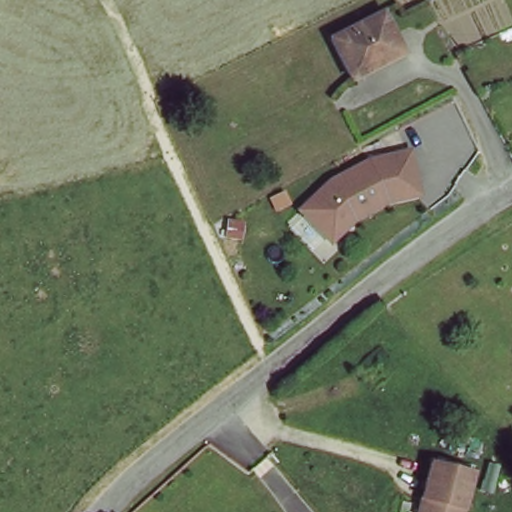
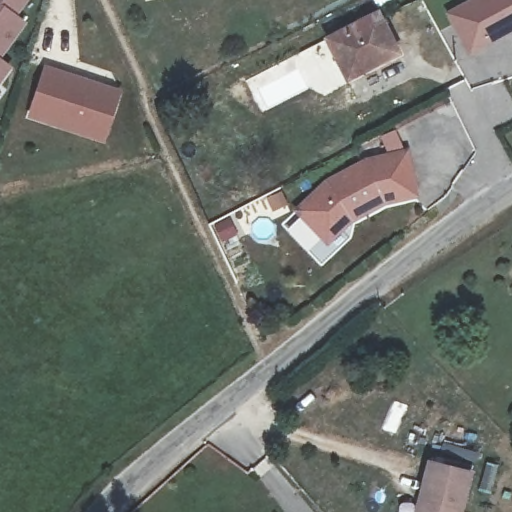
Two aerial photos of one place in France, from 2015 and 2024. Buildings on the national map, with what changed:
new [(29,0),(17,15),(28,22),(1,57),(12,67),(0,83),(0,0),(29,0)]
new [(454,15),(481,0),(512,0),(512,39),(478,57),(454,15)]
unchanged [(377,21),(398,64),(348,86),(327,45),(377,21)]
new [(122,89),(107,144),(28,117),(45,65),(122,89)]
unchanged [(411,187),(378,195),(345,212),(321,235),(292,204),(322,176),(361,155),(401,145),(411,187)]
unchanged [(428,460),(469,470),(459,512),(416,512),(428,460)]

